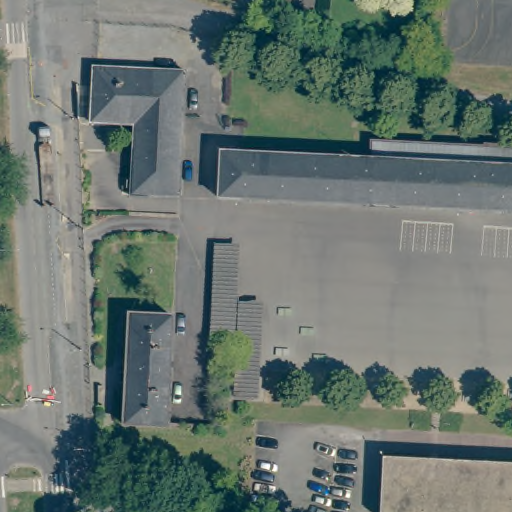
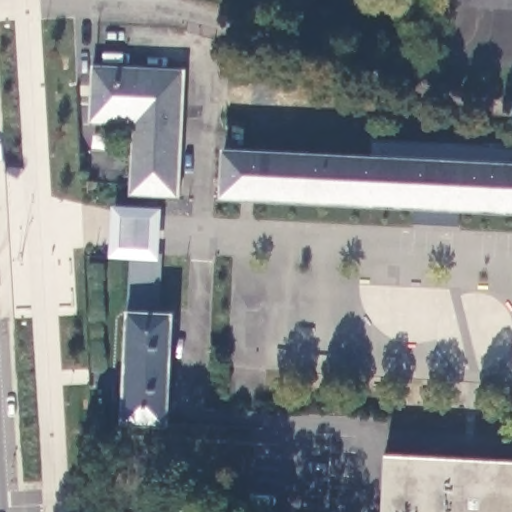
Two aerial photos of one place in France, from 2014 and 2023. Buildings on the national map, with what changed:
unchanged [(185,72),(180,197),(130,195),(135,124),(91,122),(93,84),(94,69),(92,69),(92,67),(95,67),(185,72)]
unchanged [(237,194),(237,196),(216,195),(219,146),(221,146),(221,147),(368,155),(368,137),(512,144),(512,209),(237,194)]
new [(160,254),(163,254),(162,315),(130,314),(130,259),(110,258),(113,206),(162,209),(160,254)]
unchanged [(122,423),(122,419),(125,420),(129,316),(127,316),(127,314),(173,316),(173,318),(171,318),(167,422),(168,422),(168,425),(122,423)]
unchanged [(512,461),(512,512),(380,512),(383,455),(512,461)]

